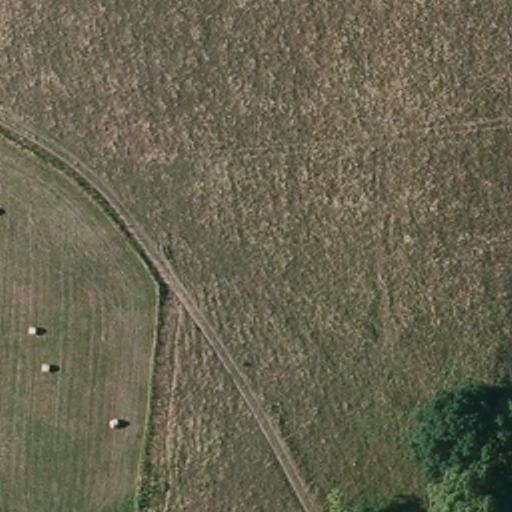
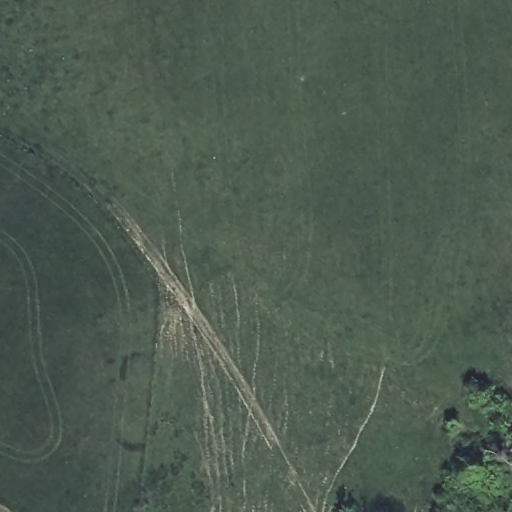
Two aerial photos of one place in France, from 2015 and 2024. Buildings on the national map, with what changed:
[]

